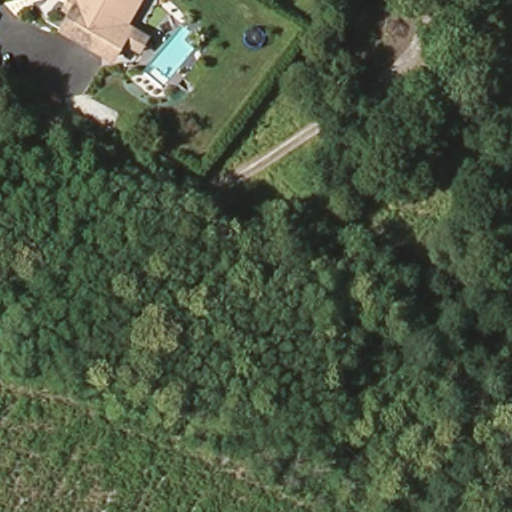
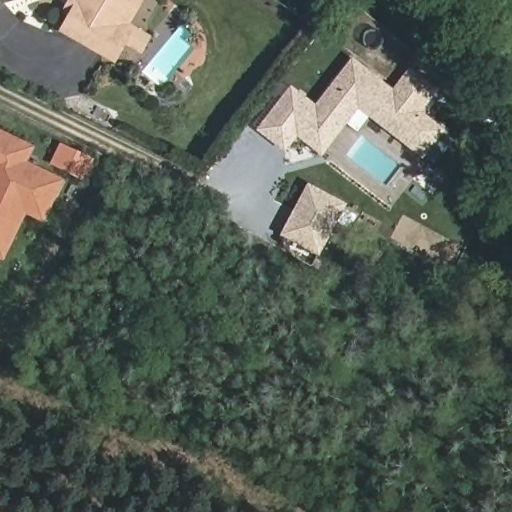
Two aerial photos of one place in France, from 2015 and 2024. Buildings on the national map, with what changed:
unchanged [(128,7),(115,28),(119,35),(109,52),(100,53),(61,30),(68,20),(63,11),(73,7),(77,0),(132,0),(128,7)]
unchanged [(132,0),(144,0),(135,15),(129,25),(141,33),(125,61),(109,52),(119,35),(115,28),(128,7),(132,0)]
new [(294,87),(300,92),(319,106),(356,60),(396,91),(413,69),(438,89),(422,111),(445,130),(425,155),(362,105),(324,152),(299,132),(288,148),(263,129),(284,101),(294,87)]
new [(26,163),(64,181),(45,218),(28,209),(4,256),(0,254),(0,131),(34,148),(26,163)]
new [(310,186),(346,205),(319,253),(285,234),(310,186)]

